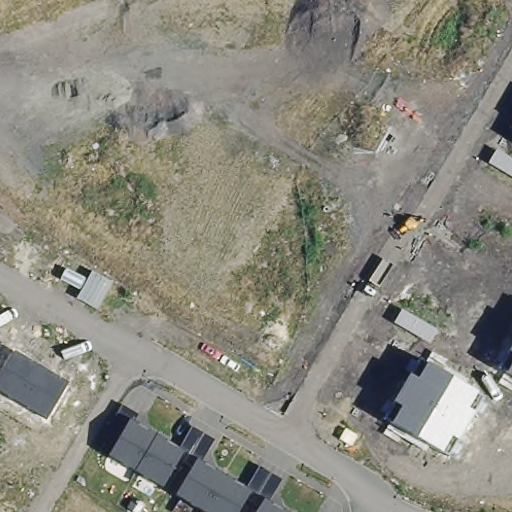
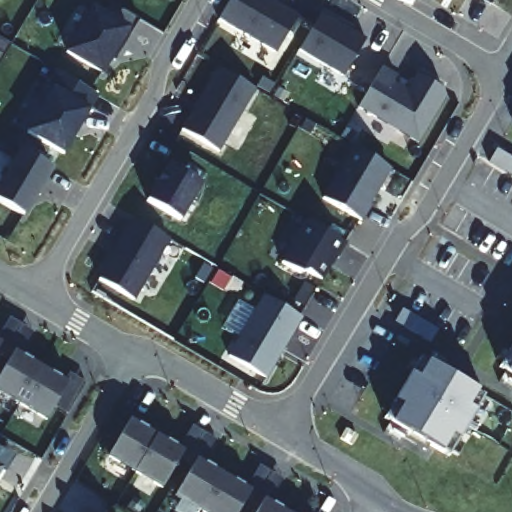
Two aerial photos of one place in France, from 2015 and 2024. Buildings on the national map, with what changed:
new [(108,0),(139,18),(106,75),(67,52),(99,0),(108,0)]
new [(268,0),(297,17),(276,52),(218,19),(230,0),(268,0)]
new [(484,0),(493,0),(491,4),(484,0)]
new [(320,14),(365,40),(342,77),(298,50),(320,14)]
new [(381,67),(396,77),(392,83),(407,92),(417,75),(443,90),(445,96),(417,142),(358,107),(381,67)]
new [(221,152),(184,131),(220,69),(257,91),(221,152)]
new [(27,132),(52,91),(47,87),(57,71),(97,96),(62,154),(27,132)]
new [(390,169),(367,206),(370,207),(361,222),(322,199),(354,147),(390,169)]
new [(44,183),(42,182),(22,216),(0,202),(0,185),(21,150),(52,169),(44,183)]
new [(169,166),(159,182),(155,180),(165,163),(166,162),(202,184),(180,220),(147,201),(169,166)]
new [(134,300),(99,279),(114,254),(112,252),(133,217),(169,239),(134,300)]
new [(338,258),(335,256),(321,280),(307,272),(300,273),(282,262),(307,221),(347,245),(338,258)]
new [(265,296),(302,317),(266,378),(228,357),(265,296)]
unchanged [(498,367),(512,343),(512,375),(498,367)]
unchanged [(68,382),(45,419),(0,392),(0,374),(14,350),(68,382)]
unchanged [(447,456),(384,419),(419,357),(482,396),(447,456)]
unchanged [(102,454),(126,416),(174,445),(189,425),(207,435),(195,457),(242,484),(255,464),(273,475),(261,496),(289,512),(201,512),(102,454)]
new [(0,481),(0,447),(15,456),(0,481)]
new [(86,510),(89,512),(85,512),(86,510)]

